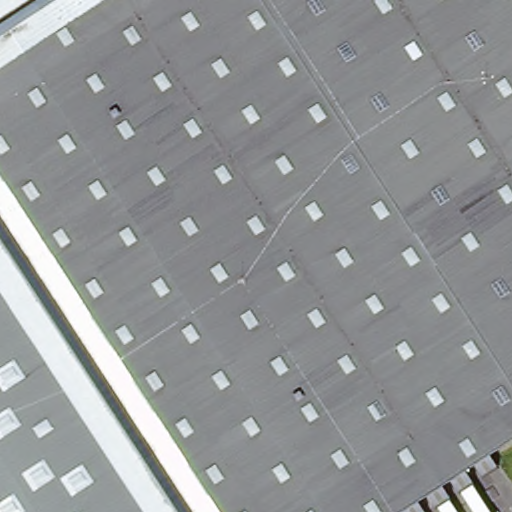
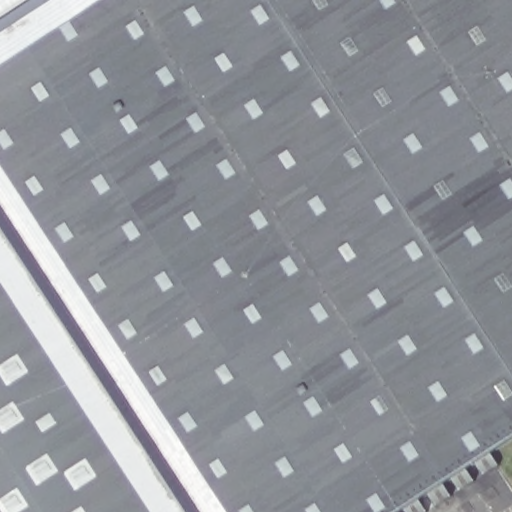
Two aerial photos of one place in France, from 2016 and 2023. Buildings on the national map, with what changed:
unchanged [(397,512),(0,512),(0,0),(512,0),(512,437),(397,512)]

